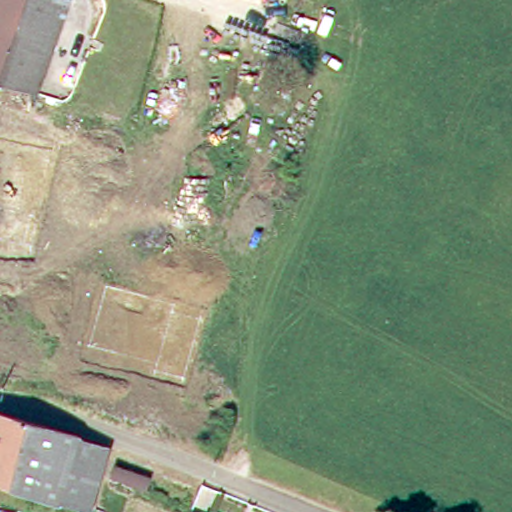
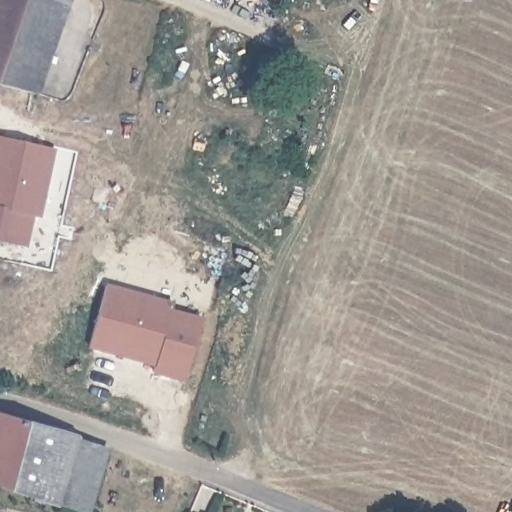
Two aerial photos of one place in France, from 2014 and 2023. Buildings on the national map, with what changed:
unchanged [(0,79),(0,0),(64,0),(36,88),(33,88),(8,81),(0,79)]
new [(53,148),(39,217),(32,216),(27,246),(0,241),(0,136),(53,148)]
new [(171,310),(199,318),(183,378),(153,371),(155,365),(88,347),(105,283),(173,301),(171,310)]
unchanged [(70,435),(50,500),(0,482),(0,408),(72,430),(70,435)]
unchanged [(70,435),(102,444),(82,512),(74,509),(50,500),(70,435)]

